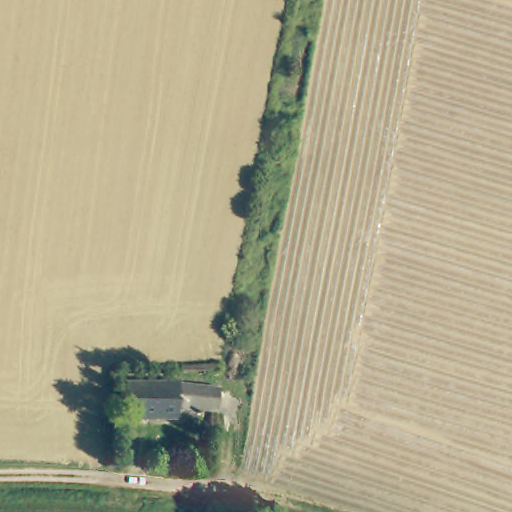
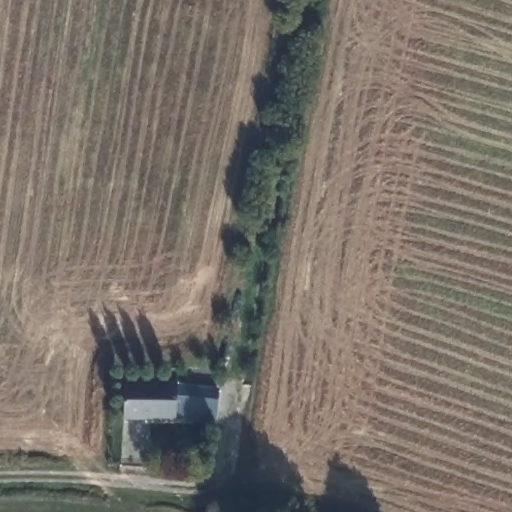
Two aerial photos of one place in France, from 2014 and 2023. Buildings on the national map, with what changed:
unchanged [(186,386),(187,393),(215,396),(213,414),(193,413),(192,419),(129,413),(131,382),(186,386)]

